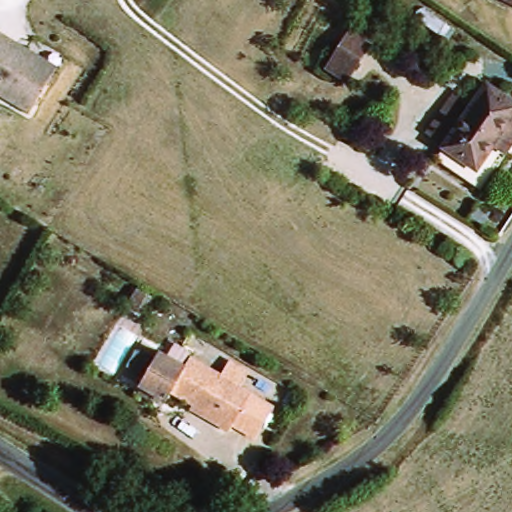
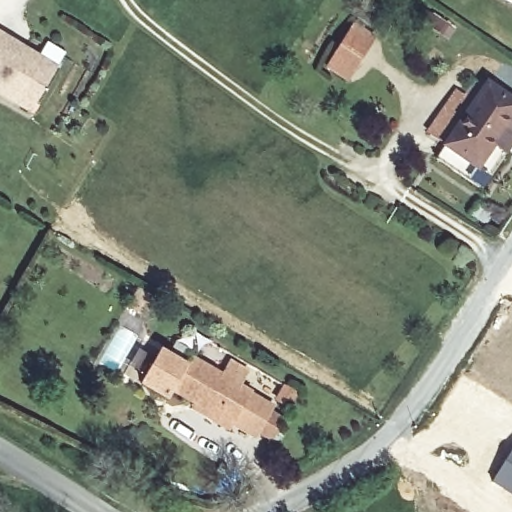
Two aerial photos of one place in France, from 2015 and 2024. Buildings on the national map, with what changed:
unchanged [(512,0),(512,6),(501,0),(512,0)]
unchanged [(340,84),(321,72),(349,29),(367,41),(340,84)]
unchanged [(57,66),(53,74),(31,113),(0,95),(0,32),(27,49),(57,66)]
unchanged [(490,180),(454,157),(435,145),(448,128),(467,99),(474,103),(484,88),(495,94),(497,91),(512,101),(512,160),(506,156),(490,180)]
unchanged [(129,303),(112,293),(121,277),(137,287),(129,303)]
unchanged [(190,400),(167,387),(162,396),(135,379),(157,344),(184,362),(190,353),(222,372),(230,359),(247,369),(239,383),(250,389),(230,423),(225,433),(209,423),(185,409),(190,400)]
unchanged [(285,410),(264,444),(230,423),(250,389),(285,410)]
new [(512,446),(512,494),(490,480),(512,446)]

